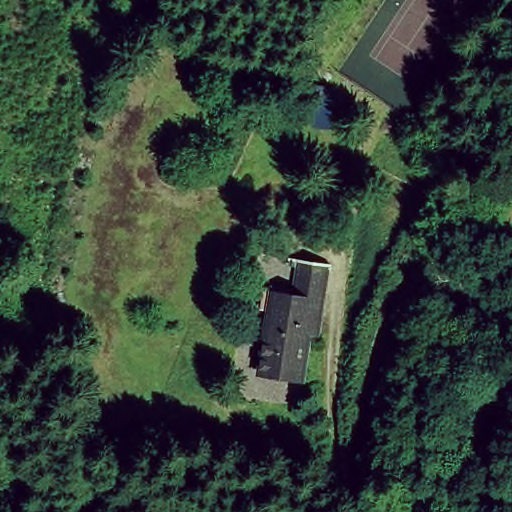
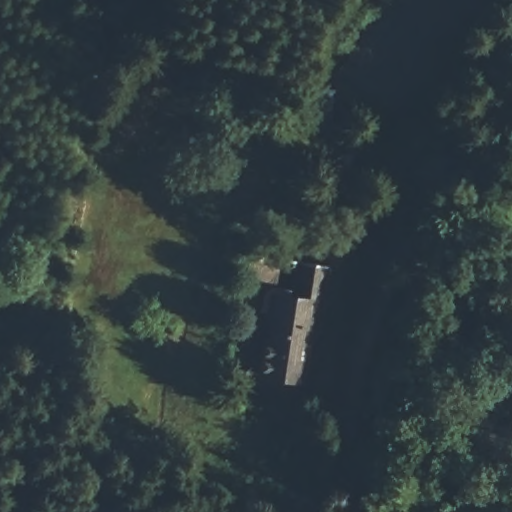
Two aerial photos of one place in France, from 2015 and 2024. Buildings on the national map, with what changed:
unchanged [(255,379),(269,301),(287,303),(294,265),(326,270),(313,343),(305,342),(298,386),(255,379)]

